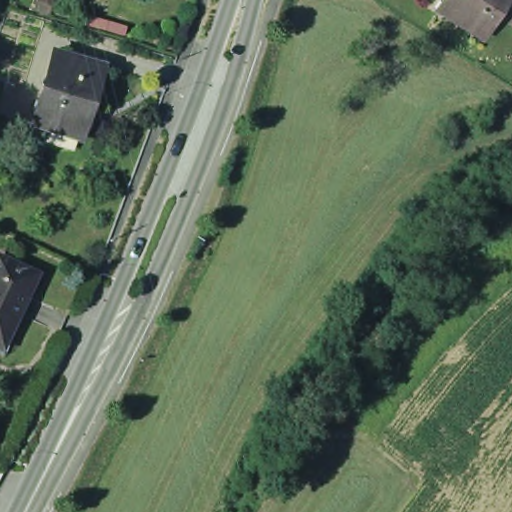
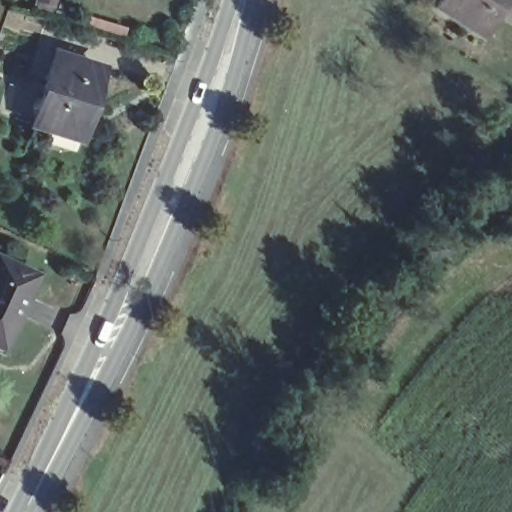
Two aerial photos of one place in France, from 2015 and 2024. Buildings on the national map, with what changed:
unchanged [(487,31),(471,21),(466,28),(431,6),(435,0),(506,0),(487,31)]
unchanged [(29,121),(50,53),(94,67),(81,109),(73,135),(64,132),(29,121)]
unchanged [(12,316),(5,313),(0,322),(0,257),(32,273),(12,316)]

